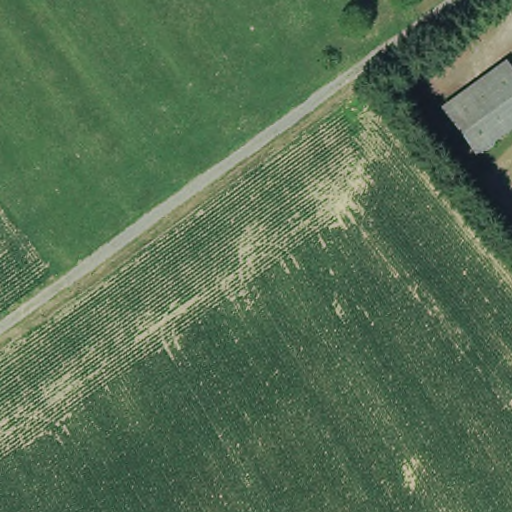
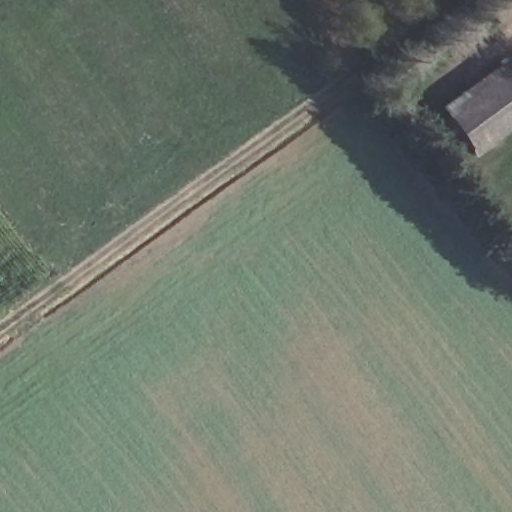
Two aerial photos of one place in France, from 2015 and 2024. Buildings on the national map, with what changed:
unchanged [(512,69),(512,115),(490,84),(511,68),(512,69)]
unchanged [(474,145),(450,112),(490,84),(512,115),(512,117),(474,145)]

